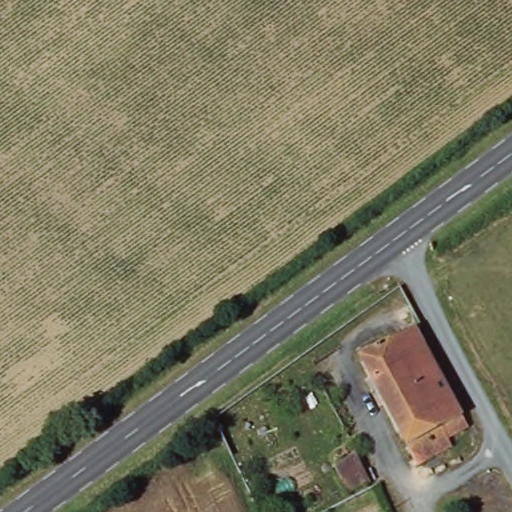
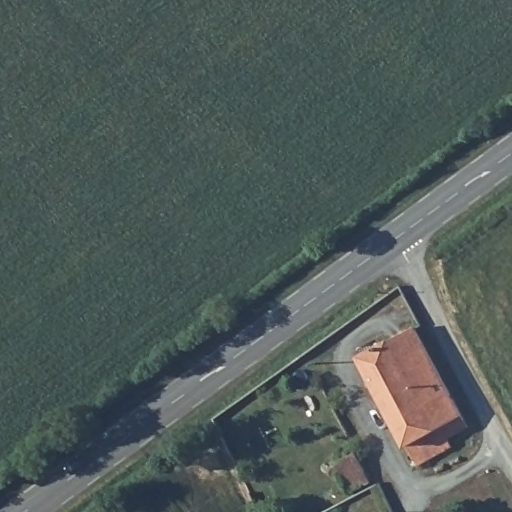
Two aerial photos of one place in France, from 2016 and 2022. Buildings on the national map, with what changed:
unchanged [(410,321),(466,418),(448,429),(454,438),(417,458),(357,352),(410,321)]
unchanged [(356,460),(370,486),(348,495),(335,472),(356,460)]

